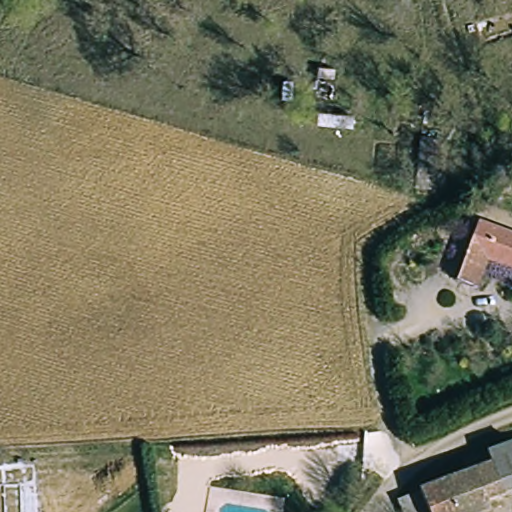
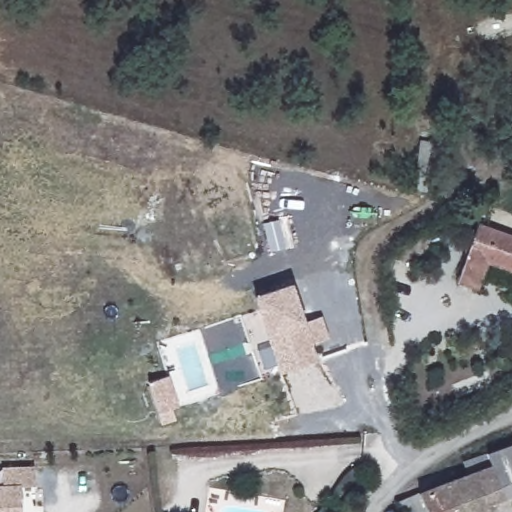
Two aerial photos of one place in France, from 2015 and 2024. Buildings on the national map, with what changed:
unchanged [(420,138),(438,141),(430,197),(412,194),(420,138)]
unchanged [(475,289),(453,281),(462,254),(472,225),(512,239),(512,269),(485,261),(475,289)]
new [(292,281),(304,320),(321,315),(329,338),(312,344),(318,360),(278,373),(266,337),(252,295),(292,281)]
unchanged [(512,473),(500,447),(512,442),(512,473)]
unchanged [(399,512),(396,504),(480,472),(474,457),(500,447),(512,473),(512,496),(486,507),(488,512),(426,512),(424,509),(417,512),(399,512)]
unchanged [(30,466),(31,485),(17,485),(19,512),(0,512),(0,467),(30,466)]

